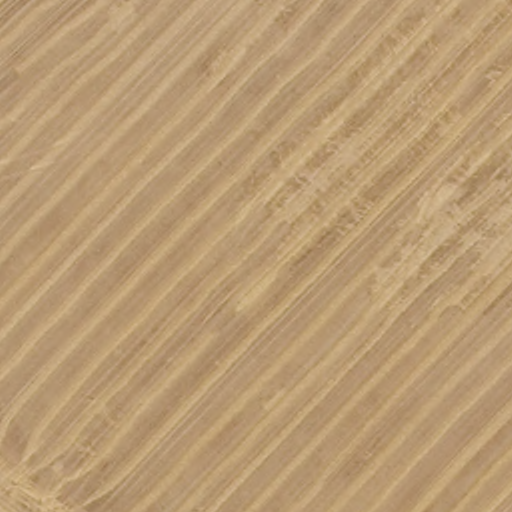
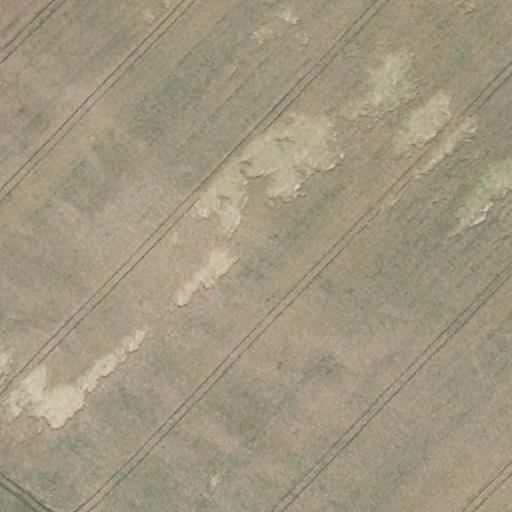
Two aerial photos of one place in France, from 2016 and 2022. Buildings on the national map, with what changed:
[]

